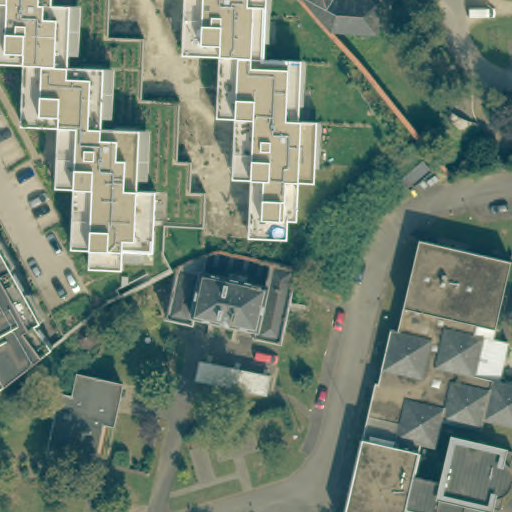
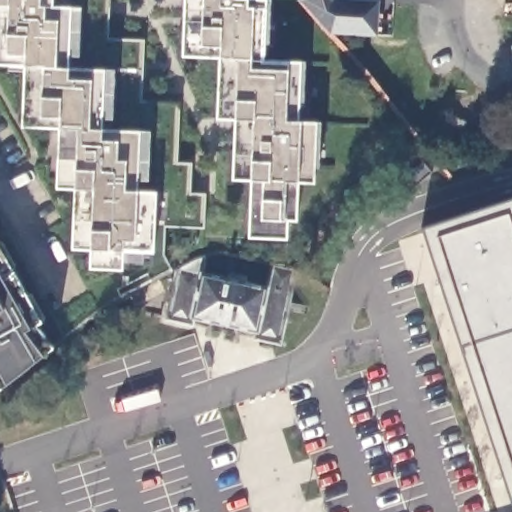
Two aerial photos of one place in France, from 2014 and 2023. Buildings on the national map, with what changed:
unchanged [(72,6),(69,66),(105,68),(103,128),(142,129),(140,190),(157,190),(155,252),(125,251),(123,269),(90,267),(91,249),(73,248),(75,189),(57,188),(59,128),(22,126),(25,66),(0,65),(0,0),(53,0),(53,5),(72,6)]
unchanged [(233,179),(236,119),(217,118),(220,57),(183,56),(184,0),(267,0),(265,60),(303,62),(300,121),(317,122),(314,182),(298,181),(296,220),(289,219),(288,238),(249,235),(251,180),(233,179)]
unchanged [(377,6),(375,39),(329,35),(302,5),(299,4),(299,0),(334,0),(334,3),(377,6)]
unchanged [(423,158),(433,170),(410,189),(400,178),(423,158)]
new [(512,505),(420,226),(512,198),(512,505)]
demolished [(512,424),(481,418),(479,427),(441,419),(434,445),(419,442),(412,471),(441,478),(452,433),(512,448),(512,450),(499,505),(465,497),(461,512),(439,512),(404,503),(402,512),(346,512),(376,380),(378,381),(392,327),(398,328),(420,238),(509,259),(494,325),(473,321),(471,330),(483,333),(475,372),(497,377),(512,380),(512,424)]
unchanged [(44,322),(38,326),(55,347),(0,389),(0,245),(44,322)]
unchanged [(294,268),(280,345),(252,339),(253,332),(193,320),(191,327),(163,321),(174,270),(194,260),(205,257),(201,272),(262,284),(267,262),(292,268),(294,268)]
demolished [(75,458),(76,451),(52,446),(63,394),(75,396),(79,375),(120,384),(112,423),(102,422),(93,462),(75,458)]

